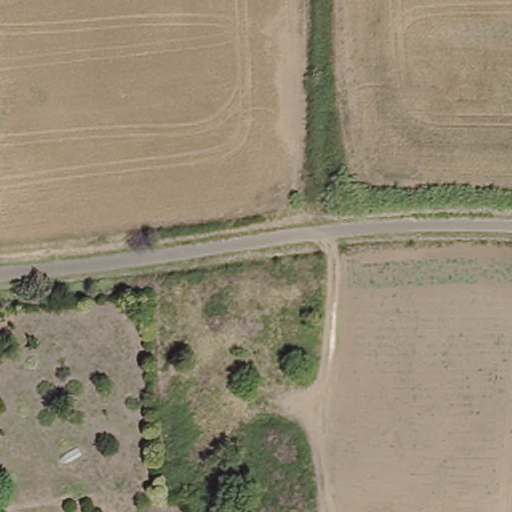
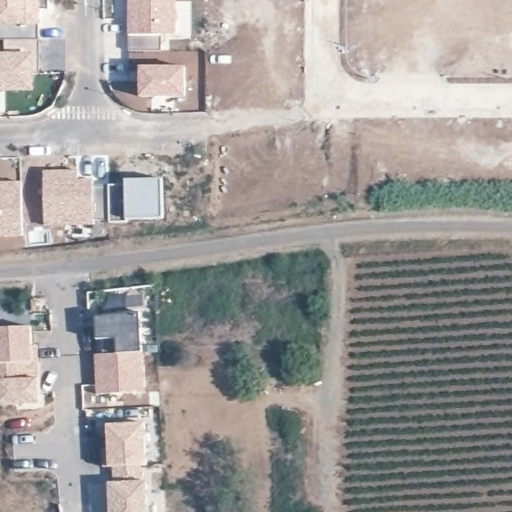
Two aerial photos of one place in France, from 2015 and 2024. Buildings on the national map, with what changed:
new [(0,25),(0,0),(40,0),(39,27),(0,25)]
new [(176,37),(164,37),(127,36),(127,0),(176,0),(177,1),(176,37)]
new [(5,51),(5,41),(0,40),(0,25),(39,27),(40,74),(35,73),(37,51),(5,51)]
new [(161,37),(162,51),(129,51),(129,36),(161,37)]
new [(37,51),(34,92),(0,92),(0,51),(4,51),(37,51)]
new [(138,64),(186,66),(185,99),(139,97),(139,94),(137,94),(138,64)]
new [(78,169),(79,175),(94,176),(95,225),(43,227),(42,169),(78,169)]
new [(123,178),(164,177),(165,220),(124,221),(123,184),(123,178)]
new [(21,180),(23,238),(0,237),(0,180),(19,180),(21,180)]
new [(124,221),(110,222),(110,221),(95,222),(94,185),(108,185),(123,184),(124,221)]
new [(141,311),(143,351),(96,352),(94,315),(141,311)]
new [(37,361),(0,363),(0,327),(31,326),(37,361)]
new [(96,352),(143,351),(145,392),(95,395),(96,352)]
new [(40,403),(0,405),(0,363),(37,361),(40,403)]
new [(147,424),(148,465),(144,465),(146,484),(151,484),(151,512),(111,512),(110,486),(114,486),(113,468),(103,467),(103,450),(110,449),(108,426),(147,424)]

